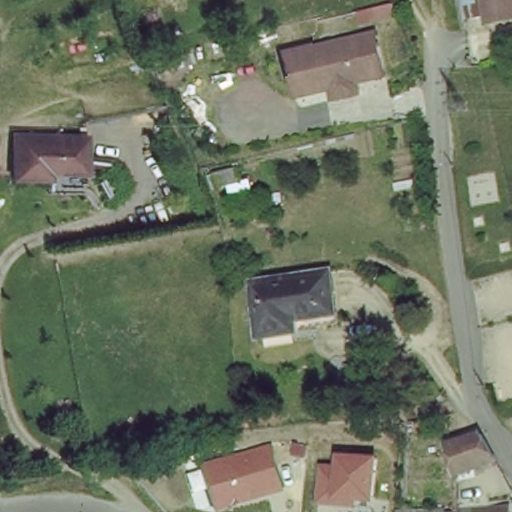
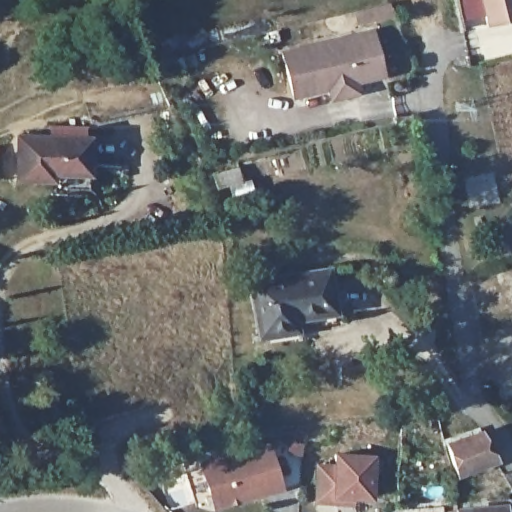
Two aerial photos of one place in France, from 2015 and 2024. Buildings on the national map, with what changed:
unchanged [(512,25),(492,25),(491,16),(462,18),(462,0),(512,0),(512,25)]
unchanged [(330,95),(328,83),(292,90),(285,45),(360,31),(364,46),(378,44),(385,72),(355,78),(357,90),(330,95)]
unchanged [(87,135),(90,185),(52,187),(51,181),(20,182),(17,139),(87,135)]
unchanged [(228,174),(205,178),(202,164),(225,160),(228,174)]
unchanged [(334,315),(300,318),(302,333),(262,338),(255,284),(328,274),(334,315)]
unchanged [(484,438),(490,466),(451,475),(449,445),(484,438)]
unchanged [(217,511),(200,465),(269,443),(284,490),(217,511)]
unchanged [(316,462),(334,462),(334,452),(375,455),(373,500),(354,500),(353,505),(314,502),(316,462)]

